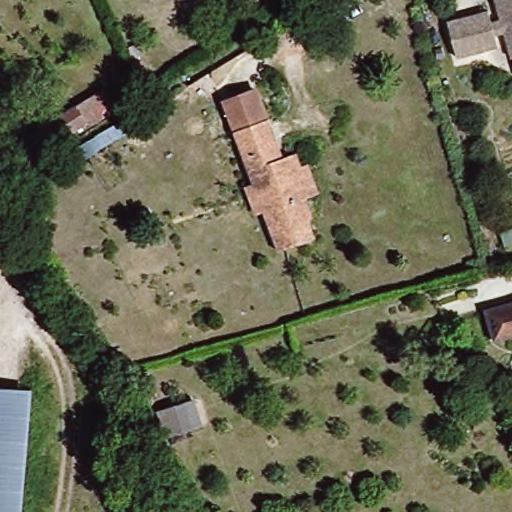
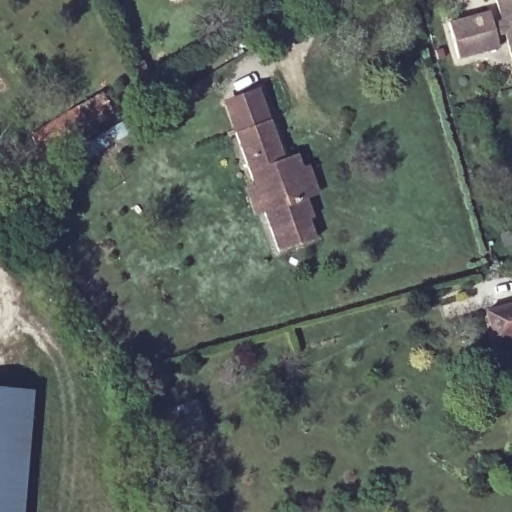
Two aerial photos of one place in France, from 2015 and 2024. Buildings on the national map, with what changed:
unchanged [(502,36),(491,40),(495,51),(456,64),(445,30),(485,16),(488,27),(498,24),(490,0),(512,0),(512,62),(510,62),(502,36)]
unchanged [(115,116),(66,141),(57,122),(104,91),(115,116)]
unchanged [(249,195),(260,191),(230,114),(265,100),(290,166),(307,159),(316,183),(308,186),(318,214),(311,217),(319,238),(282,253),(269,217),(257,221),(249,195)]
unchanged [(493,314),(512,309),(512,340),(501,343),(493,314)]
unchanged [(0,512),(0,390),(34,392),(25,512),(0,512)]
unchanged [(189,413),(222,398),(233,423),(201,438),(189,413)]

